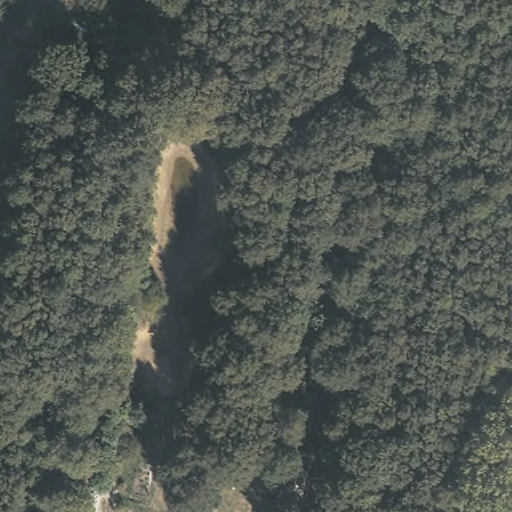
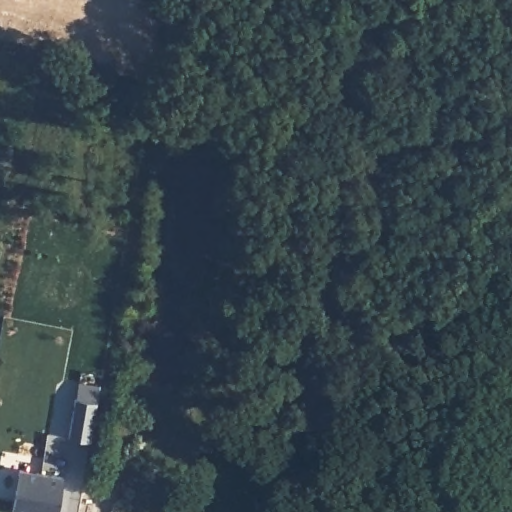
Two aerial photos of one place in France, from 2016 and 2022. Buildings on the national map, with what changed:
new [(64,476),(58,512),(13,512),(20,468),(64,476)]

